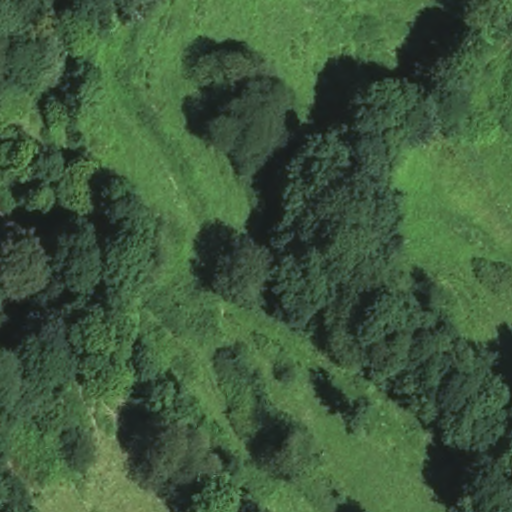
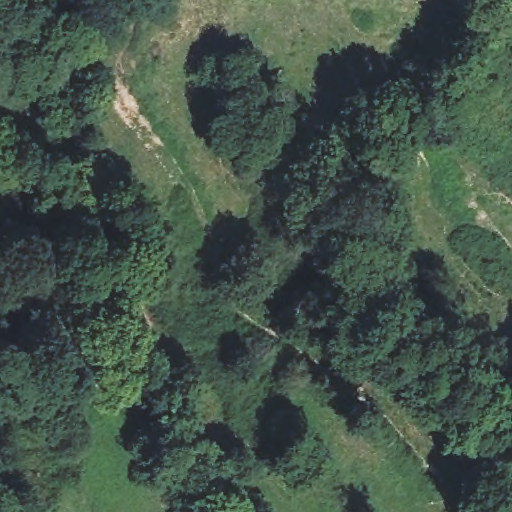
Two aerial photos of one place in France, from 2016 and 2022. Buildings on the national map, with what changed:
unchanged [(138,25),(117,18),(122,0),(145,0),(138,25)]

